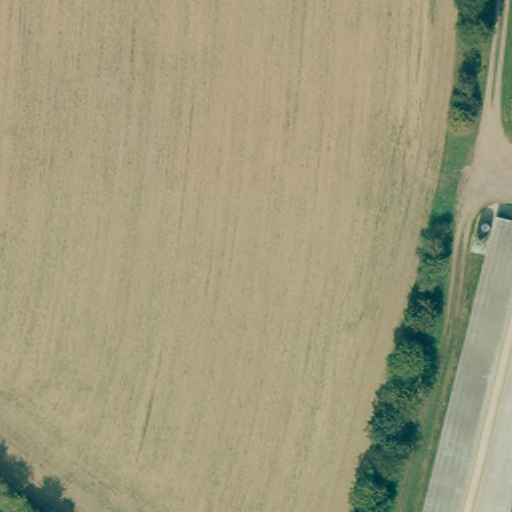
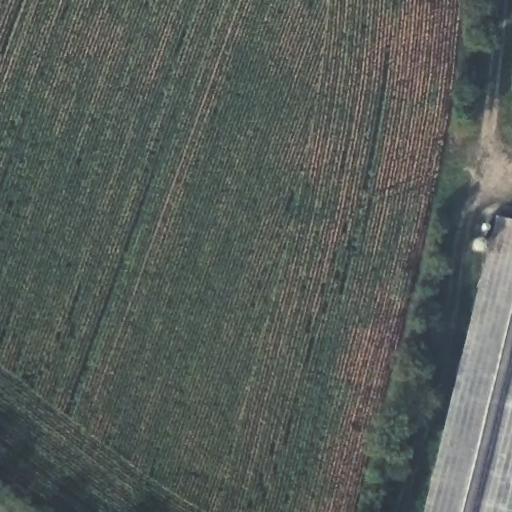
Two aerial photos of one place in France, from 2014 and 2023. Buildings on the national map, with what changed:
unchanged [(496,218),(512,222),(512,499),(509,512),(422,512),(496,218)]

